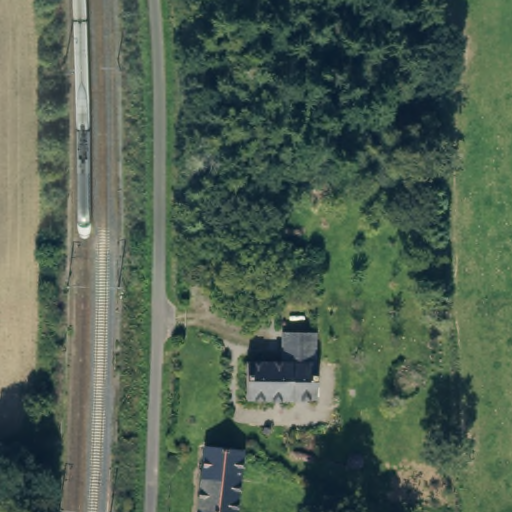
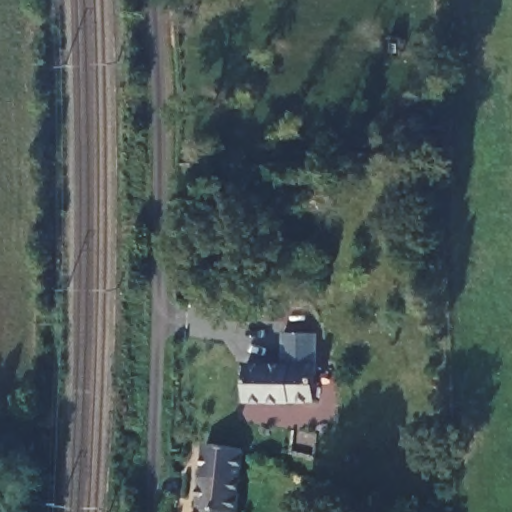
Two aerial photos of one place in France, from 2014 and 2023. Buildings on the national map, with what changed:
unchanged [(243,398),(245,363),(283,365),(287,336),(319,338),(314,403),(243,398)]
unchanged [(237,512),(197,512),(207,445),(244,449),(237,512)]

